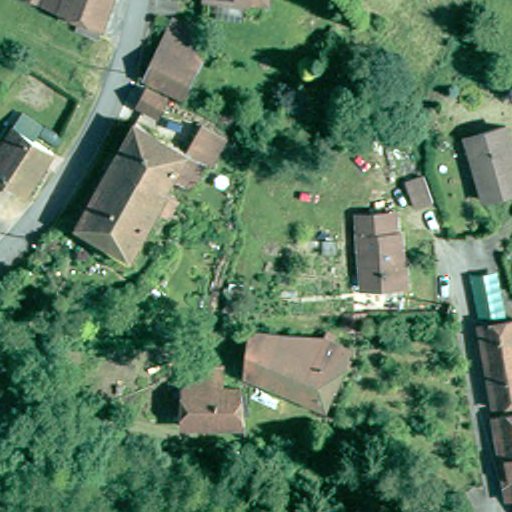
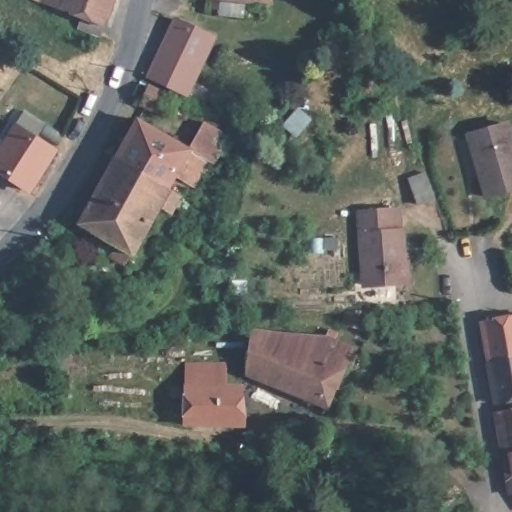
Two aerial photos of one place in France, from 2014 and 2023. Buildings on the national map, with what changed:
unchanged [(83,30),(87,14),(51,0),(119,0),(111,23),(105,41),(83,30)]
unchanged [(199,77),(192,91),(157,73),(184,17),(220,33),(220,34),(199,77)]
unchanged [(169,111),(146,99),(155,79),(179,91),(169,111)]
unchanged [(490,179),(482,152),(489,150),(481,125),(512,117),(512,181),(492,187),(490,179)]
unchanged [(195,149),(175,188),(122,158),(144,119),(195,149)]
unchanged [(219,162),(195,149),(212,120),(235,133),(219,162)]
unchanged [(60,148),(34,187),(0,164),(0,155),(21,123),(60,148)]
unchanged [(182,193),(174,208),(162,203),(147,230),(149,232),(131,263),(119,258),(126,246),(85,223),(122,158),(175,188),(182,193)]
unchanged [(420,207),(411,179),(429,174),(437,202),(420,207)]
unchanged [(401,207),(402,226),(405,225),(409,278),(367,281),(362,210),(401,207)]
unchanged [(512,311),(512,354),(494,359),(485,317),(512,311)]
unchanged [(248,375),(260,333),(273,339),(275,334),(327,341),(330,332),(339,336),(336,344),(343,347),(346,339),(358,345),(354,353),(355,354),(337,398),(334,396),(330,408),(248,375)]
unchanged [(494,359),(512,354),(512,396),(502,398),(494,359)]
unchanged [(197,422),(166,415),(167,384),(189,383),(189,363),(229,363),(230,384),(249,382),(251,422),(197,422)]
unchanged [(512,406),(512,456),(503,408),(512,406)]

